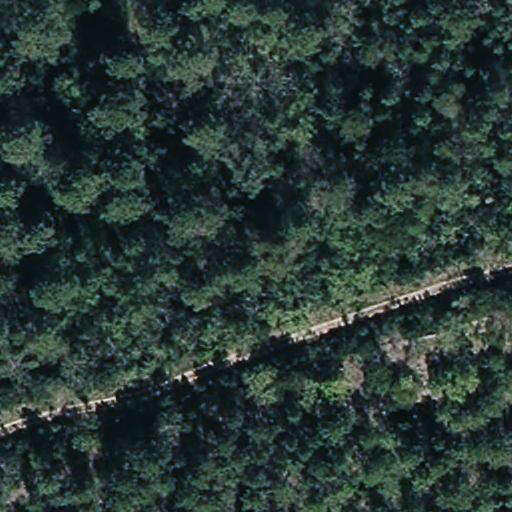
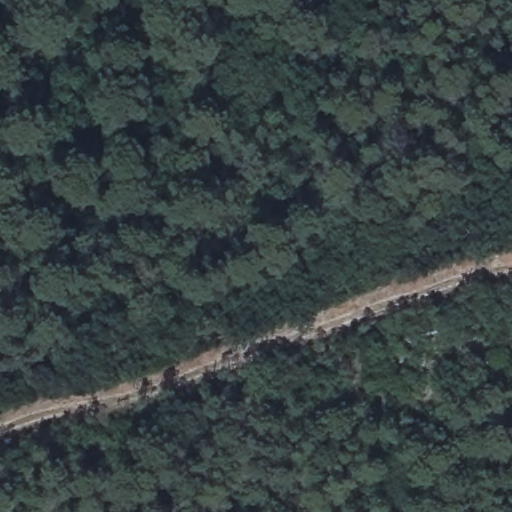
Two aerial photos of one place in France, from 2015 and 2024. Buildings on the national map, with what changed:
[]

